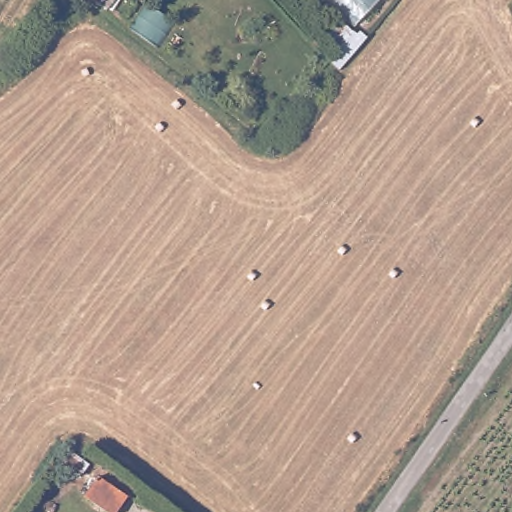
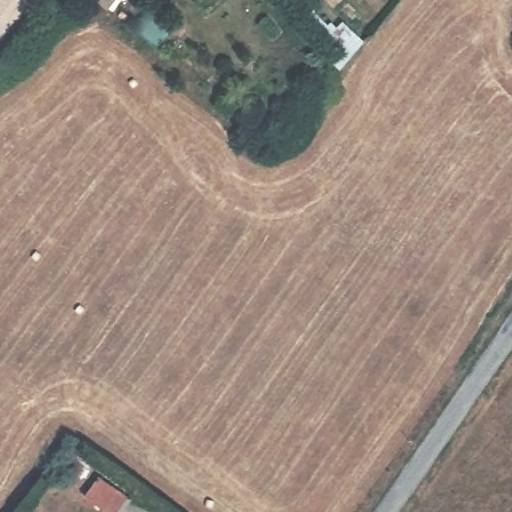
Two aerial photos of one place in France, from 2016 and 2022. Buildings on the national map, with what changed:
unchanged [(89,0),(107,0),(100,9),(89,0)]
unchanged [(120,512),(103,512),(84,499),(98,480),(129,500),(120,512)]

